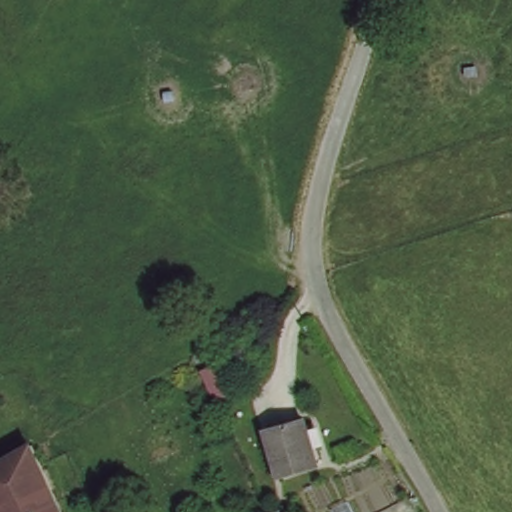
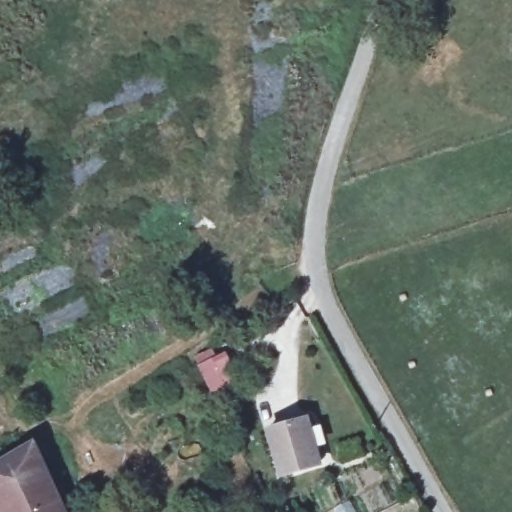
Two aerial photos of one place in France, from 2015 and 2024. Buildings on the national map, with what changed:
unchanged [(313,458),(277,469),(265,425),(300,414),(313,458)]
unchanged [(0,505),(0,453),(30,438),(65,512),(4,512),(0,505)]
unchanged [(287,512),(274,512),(273,509),(285,506),(287,512)]

